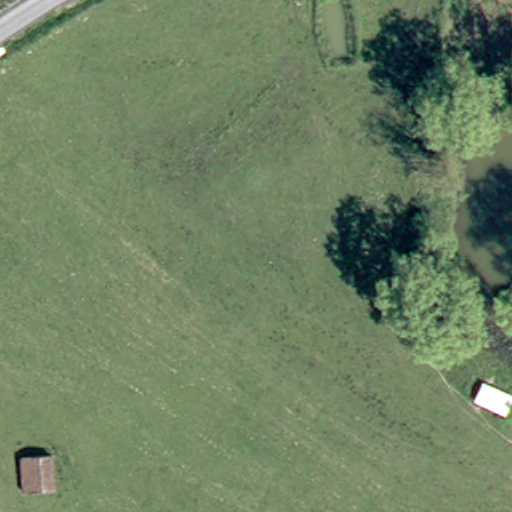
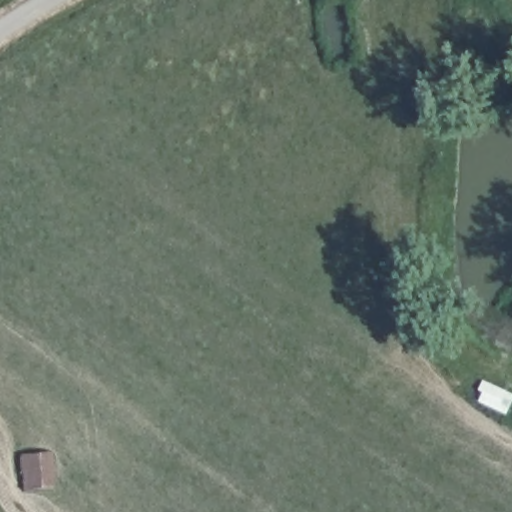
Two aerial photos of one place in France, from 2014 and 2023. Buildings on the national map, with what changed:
unchanged [(23,459),(52,457),(55,489),(25,490),(23,459)]

